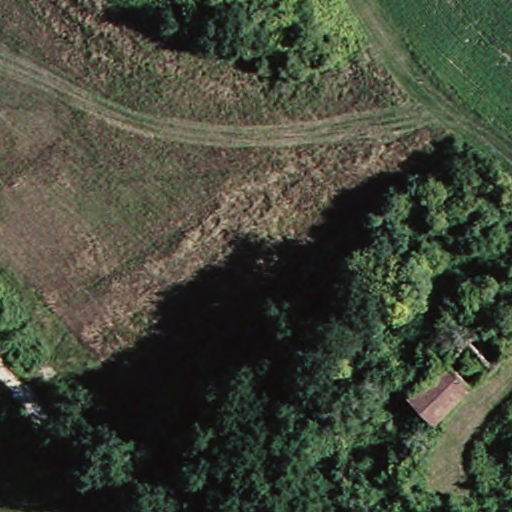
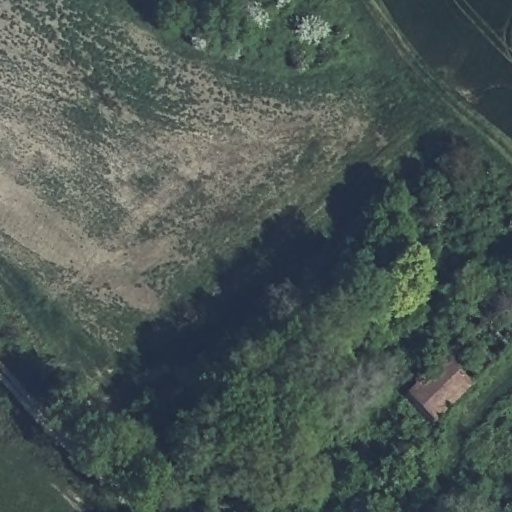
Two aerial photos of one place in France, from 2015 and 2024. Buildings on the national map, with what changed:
unchanged [(435,419),(408,391),(448,354),(474,382),(435,419)]

